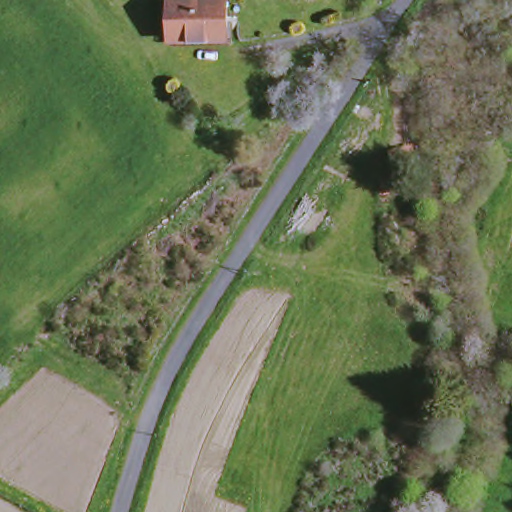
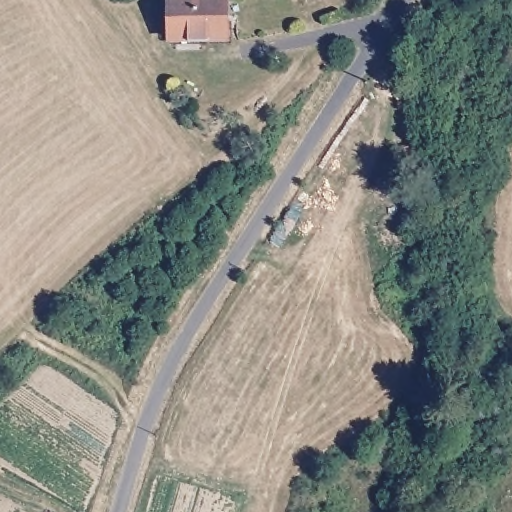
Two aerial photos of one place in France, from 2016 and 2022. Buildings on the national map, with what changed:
unchanged [(169,40),(166,0),(225,0),(227,35),(169,40)]

